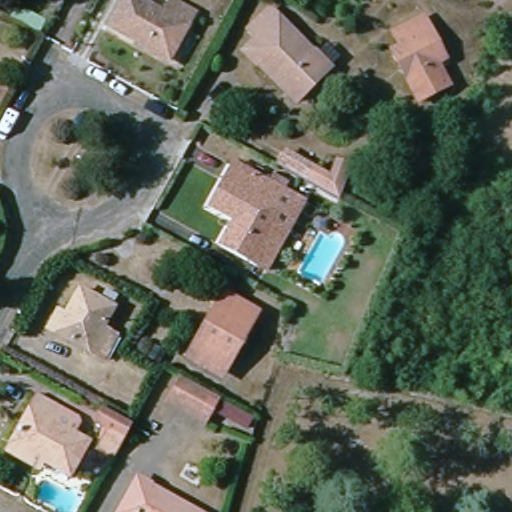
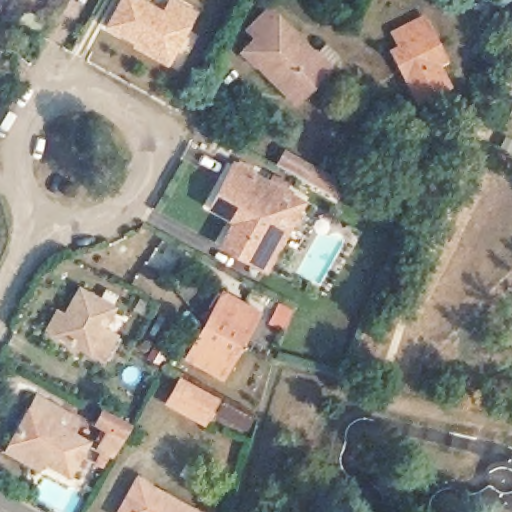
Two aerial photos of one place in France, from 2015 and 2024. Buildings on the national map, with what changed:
unchanged [(139,43),(109,26),(123,0),(141,0),(164,13),(171,0),(172,0),(196,13),(170,61),(167,66),(136,48),(139,43)]
unchanged [(47,23),(41,35),(12,20),(18,8),(47,23)]
unchanged [(297,103),(257,62),(261,59),(250,48),(258,40),(251,31),(272,11),(315,56),(327,44),(342,58),(297,103)]
unchanged [(445,90),(417,105),(404,80),(402,81),(388,56),(397,53),(390,39),(420,23),(441,64),(433,68),(445,90)]
unchanged [(338,198),(308,182),(315,170),(332,178),(338,163),(351,168),(338,198)]
unchanged [(250,267),(222,252),(237,226),(212,213),(235,172),(270,191),(275,181),(288,188),(283,198),(303,208),(269,271),(267,276),(250,267)]
unchanged [(112,342),(100,364),(52,339),(44,335),(53,318),(61,322),(75,295),(97,307),(102,296),(113,301),(107,313),(110,314),(98,335),(112,342)]
unchanged [(200,342),(216,313),(225,296),(230,299),(255,313),(220,375),(195,361),(191,358),(200,342)]
unchanged [(200,428),(165,409),(179,383),(214,403),(200,428)]
unchanged [(7,452),(12,445),(37,398),(57,408),(97,430),(90,444),(71,477),(44,462),(40,470),(7,452)]
unchanged [(97,464),(103,452),(99,450),(109,431),(97,424),(105,410),(132,425),(115,458),(108,470),(97,464)]
unchanged [(139,479),(195,512),(120,512),(139,479)]

